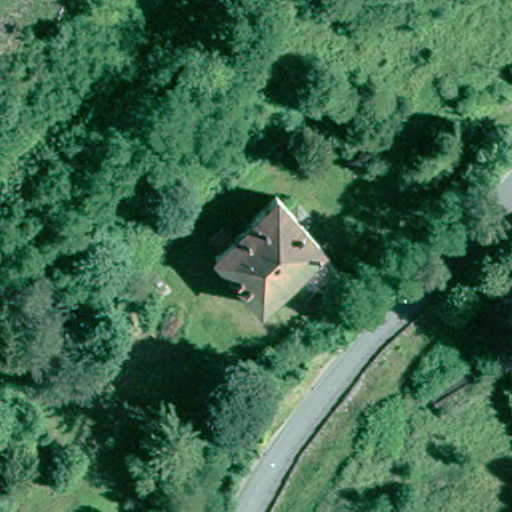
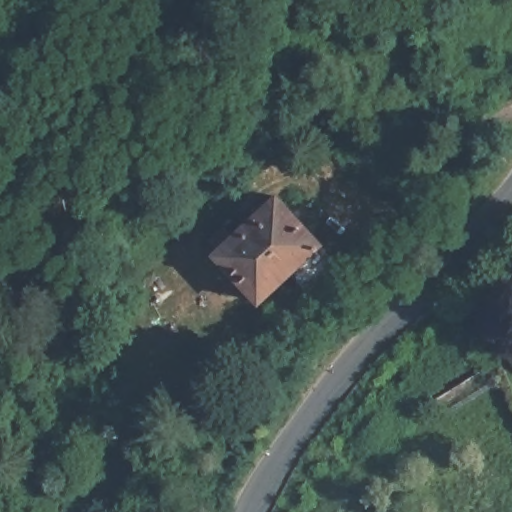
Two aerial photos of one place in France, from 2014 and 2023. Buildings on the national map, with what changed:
unchanged [(284,203),(327,249),(323,253),(336,268),(309,293),(295,278),(264,304),(220,258),(225,254),(215,243),(227,233),(236,244),(284,203)]
unchanged [(491,359),(487,362),(495,376),(440,411),(426,387),(485,350),(491,359)]

